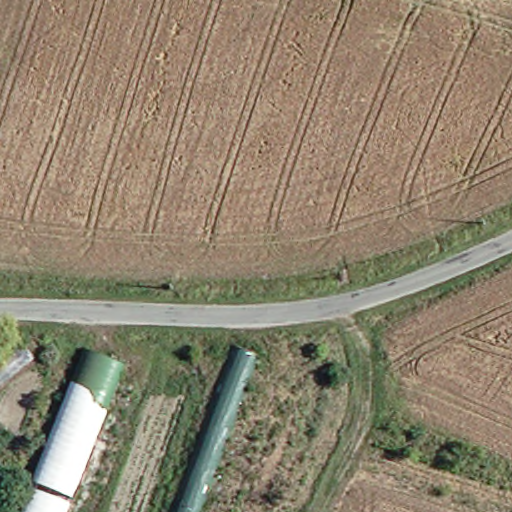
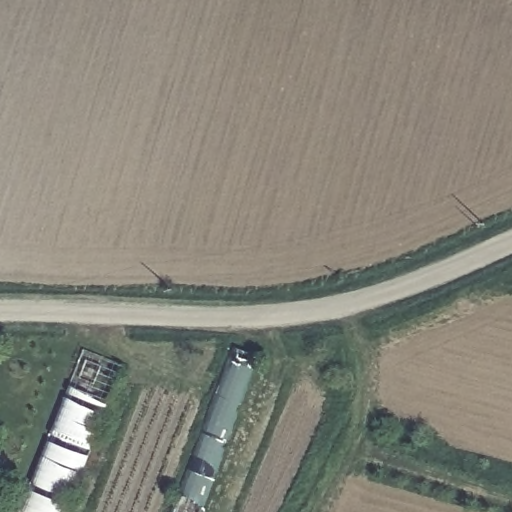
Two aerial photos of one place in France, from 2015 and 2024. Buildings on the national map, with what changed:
unchanged [(117,364),(56,512),(7,512),(75,346),(117,364)]
unchanged [(225,346),(255,357),(196,512),(162,512),(225,346)]

